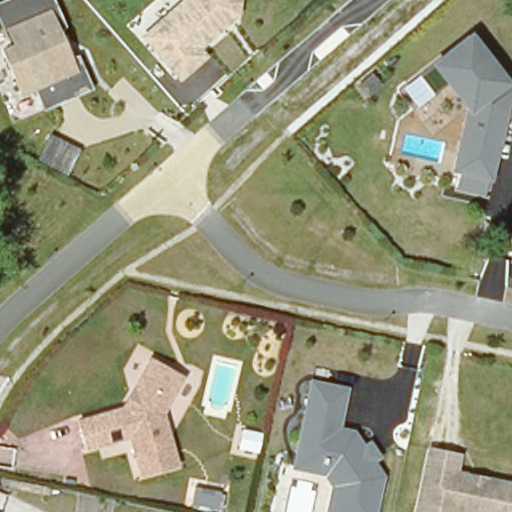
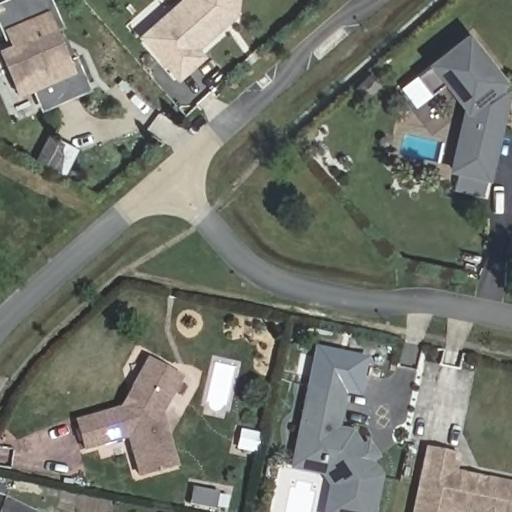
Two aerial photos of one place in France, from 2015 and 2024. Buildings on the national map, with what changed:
unchanged [(42,105),(35,88),(19,95),(0,54),(0,45),(7,40),(0,25),(0,0),(50,0),(90,85),(42,105)]
unchanged [(176,0),(239,0),(237,13),(199,46),(205,56),(179,78),(136,33),(176,0)]
unchanged [(430,92),(417,73),(469,34),(485,55),(478,61),(505,95),(487,176),(453,168),(467,101),(450,78),(430,92)]
unchanged [(65,173),(36,159),(49,133),(76,148),(65,173)]
new [(346,386),(307,378),(315,345),(368,356),(360,396),(344,393),(346,386)]
unchanged [(141,481),(126,438),(84,451),(73,419),(119,403),(147,359),(184,376),(164,410),(182,464),(141,481)]
unchanged [(346,386),(338,426),(351,429),(363,443),(380,450),(376,469),(380,476),(373,512),(323,512),(327,486),(319,470),(287,466),(307,378),(346,386)]
unchanged [(457,468),(512,478),(512,494),(508,512),(410,512),(423,447),(461,451),(457,468)]

